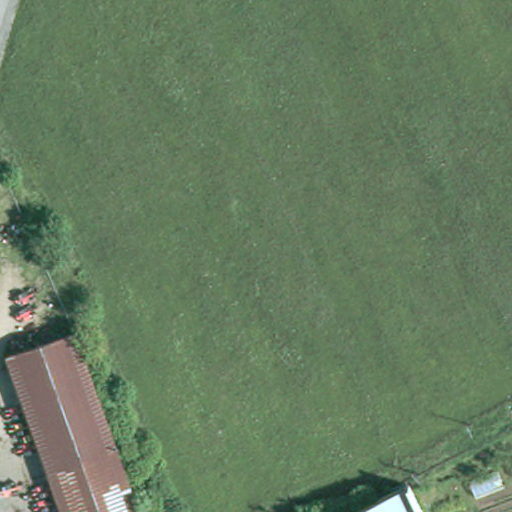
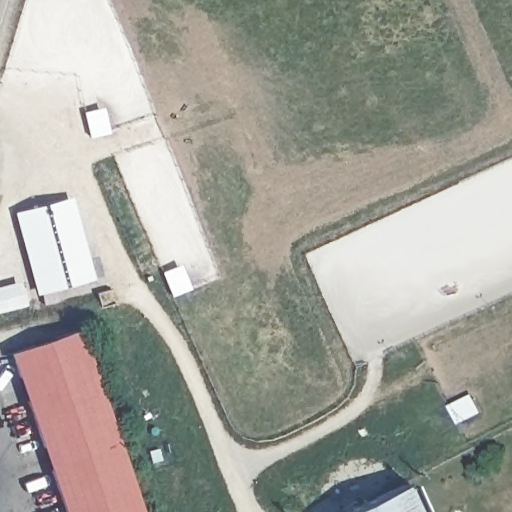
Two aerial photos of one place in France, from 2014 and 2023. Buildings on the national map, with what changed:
new [(75,197),(97,280),(39,296),(17,215),(75,197)]
unchanged [(18,353),(84,328),(146,512),(72,512),(18,353)]
unchanged [(414,490),(424,512),(369,512),(414,490)]

